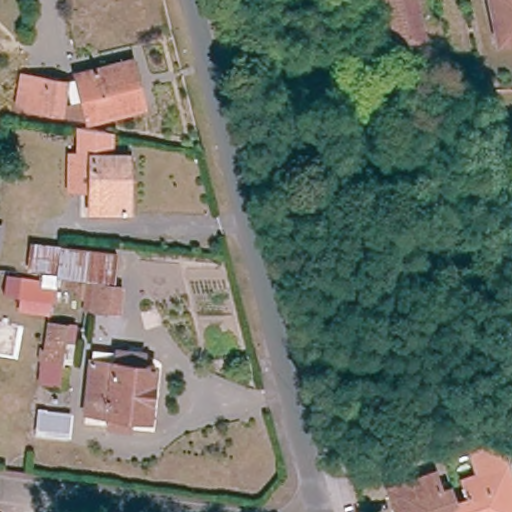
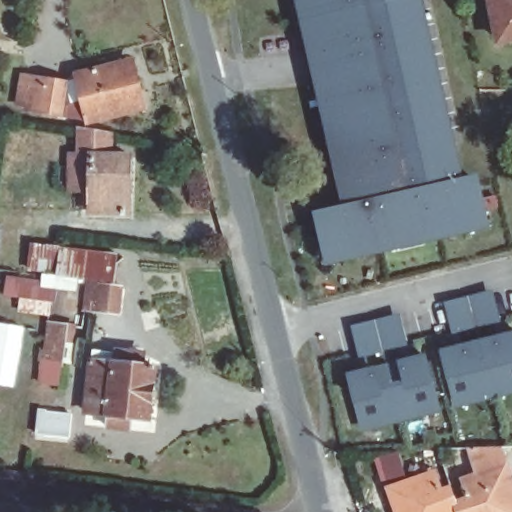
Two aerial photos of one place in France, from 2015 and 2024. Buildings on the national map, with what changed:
new [(466,177),(479,174),(490,228),(325,266),(314,211),(341,205),(294,0),(423,0),(466,177)]
demolished [(429,24),(436,22),(441,45),(382,61),(376,37),(392,33),(384,0),(424,0),(429,24)]
unchanged [(495,0),(512,0),(512,42),(505,43),(495,0)]
unchanged [(146,112),(91,126),(72,123),(62,87),(134,68),(146,112)]
unchanged [(57,119),(21,113),(26,81),(62,87),(57,119)]
unchanged [(132,219),(96,220),(98,197),(78,195),(79,164),(88,164),(88,135),(112,139),(111,164),(134,166),(132,219)]
unchanged [(70,249),(66,278),(65,288),(58,287),(54,317),(16,310),(18,291),(3,289),(9,239),(70,249)]
unchanged [(70,249),(115,254),(111,285),(85,281),(66,278),(70,249)]
unchanged [(85,281),(111,285),(124,287),(121,313),(82,306),(85,281)]
new [(451,335),(444,302),(493,290),(501,322),(451,335)]
new [(359,359),(351,326),(400,313),(408,346),(359,359)]
unchanged [(50,328),(67,330),(62,366),(47,364),(50,328)]
new [(440,350),(512,332),(512,394),(455,408),(447,379),(440,350)]
new [(434,384),(440,411),(360,431),(354,400),(345,373),(427,353),(434,384)]
unchanged [(98,360),(120,364),(120,360),(163,366),(157,423),(114,416),(114,413),(93,411),(98,360)]
unchanged [(44,371),(62,372),(61,394),(42,393),(44,371)]
unchanged [(466,497),(480,491),(477,486),(468,456),(502,455),(509,476),(512,486),(512,512),(469,512),(470,512),(466,497)]
unchanged [(398,512),(393,496),(424,485),(426,493),(440,488),(447,512),(398,512)]
unchanged [(458,499),(462,512),(447,512),(440,488),(441,488),(446,503),(458,499)]

